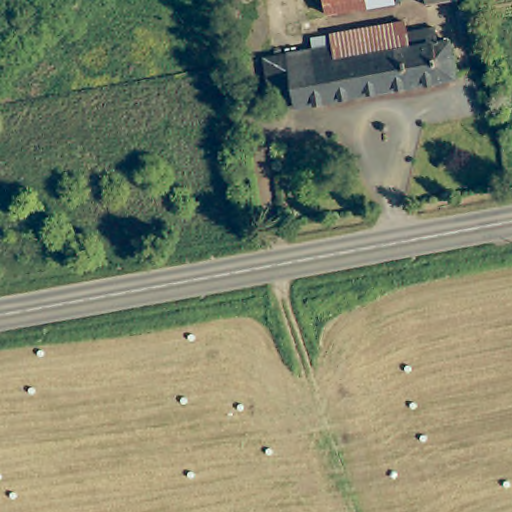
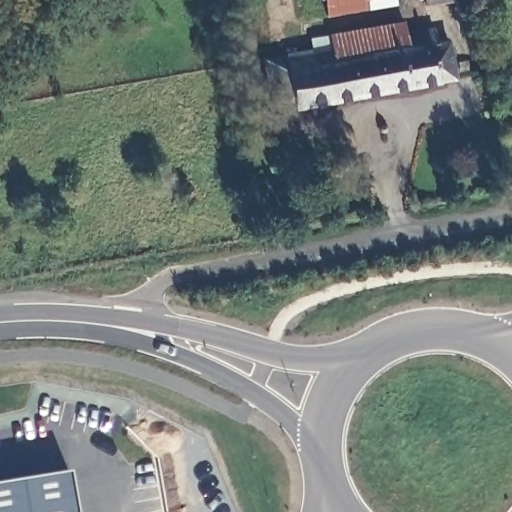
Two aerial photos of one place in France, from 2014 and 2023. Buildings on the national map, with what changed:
unchanged [(327,8),(326,0),(381,0),(327,8)]
unchanged [(429,2),(429,0),(447,0),(429,2)]
unchanged [(475,29),(463,31),(459,10),(472,8),(475,29)]
unchanged [(313,51),(311,37),(331,33),(403,21),(405,32),(436,26),(439,42),(450,40),(457,78),(298,106),(289,55),(313,51)]
unchanged [(275,110),(266,59),(289,55),(298,106),(275,110)]
new [(0,512),(0,485),(70,473),(76,512),(0,512)]

